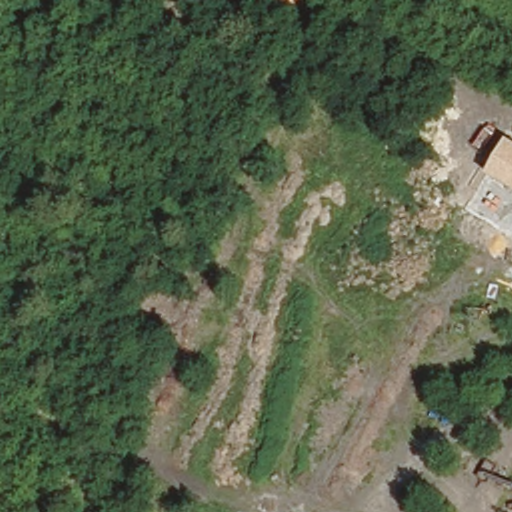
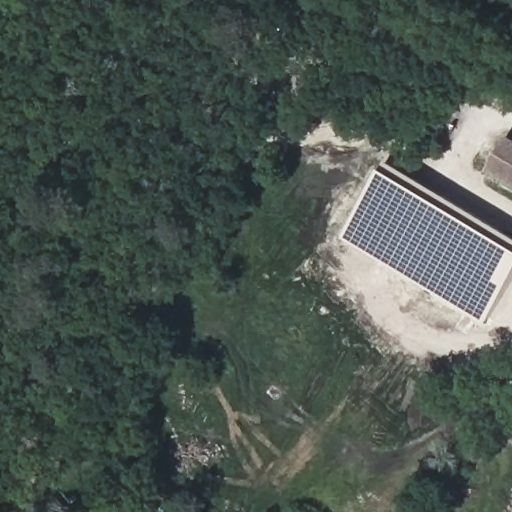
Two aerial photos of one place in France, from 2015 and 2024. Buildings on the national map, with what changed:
unchanged [(507,136),(512,139),(512,187),(487,174),(507,136)]
new [(482,322),(342,237),(386,161),(512,237),(512,281),(497,306),(492,304),(482,322)]

